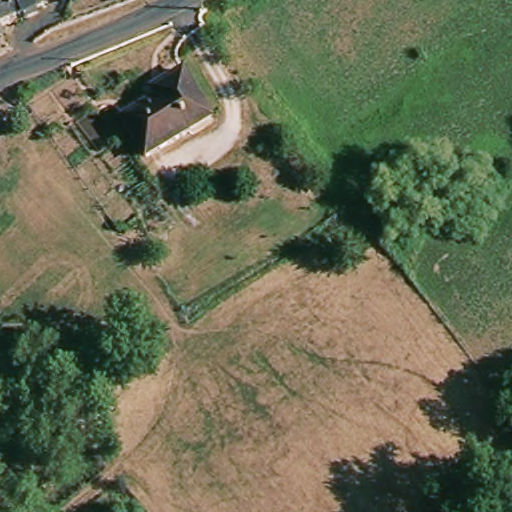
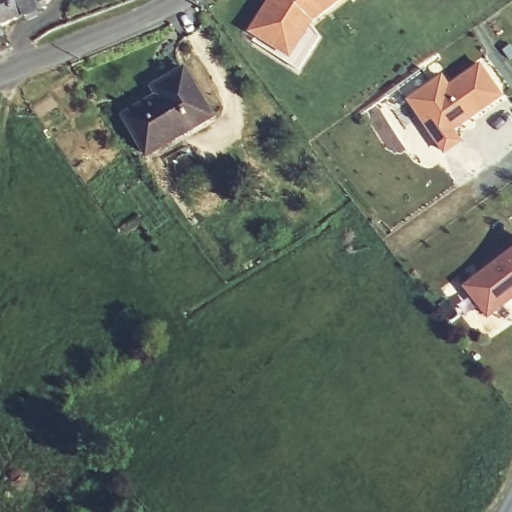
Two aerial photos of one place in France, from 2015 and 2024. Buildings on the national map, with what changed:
unchanged [(40,9),(0,26),(0,0),(36,0),(40,9)]
new [(268,3),(272,0),(341,0),(309,25),(307,23),(305,25),(286,55),(249,32),(268,3)]
unchanged [(3,49),(0,50),(0,41),(3,49)]
new [(449,84),(481,62),(504,96),(454,130),(462,142),(444,155),(406,100),(442,75),(449,84)]
unchanged [(141,161),(118,122),(153,102),(162,97),(156,88),(178,75),(206,123),(141,161)]
new [(463,287),(512,250),(512,301),(488,320),(463,287)]

